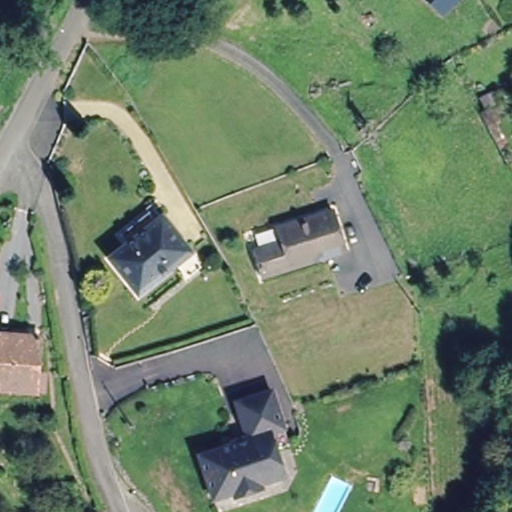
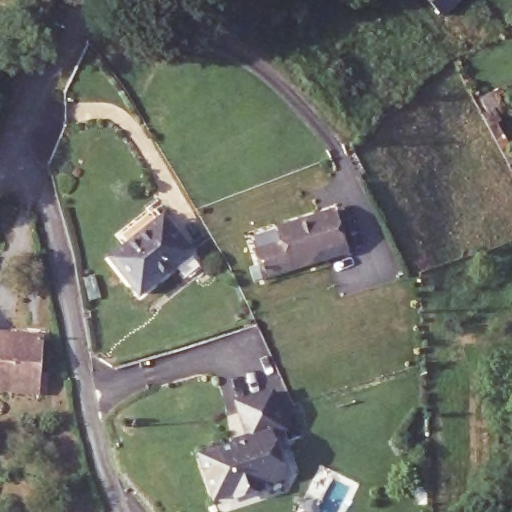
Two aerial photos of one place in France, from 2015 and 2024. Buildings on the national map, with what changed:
unchanged [(420,0),(457,0),(436,20),(420,0)]
unchanged [(139,292),(113,257),(130,243),(122,232),(151,210),(161,223),(186,258),(139,292)]
unchanged [(267,227),(280,224),(328,211),(340,251),(254,277),(245,248),(270,240),(267,227)]
unchanged [(38,339),(33,394),(0,390),(0,335),(38,339)]
unchanged [(274,474),(256,479),(257,485),(232,493),(231,487),(209,495),(196,451),(245,434),(240,419),(232,398),(269,387),(275,407),(281,424),(267,429),(274,451),(280,473),(274,474)]

